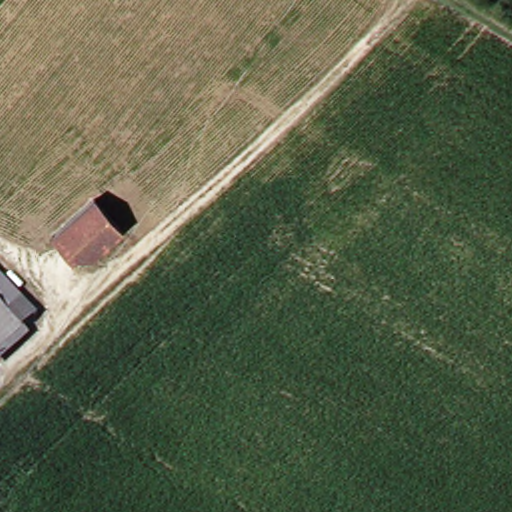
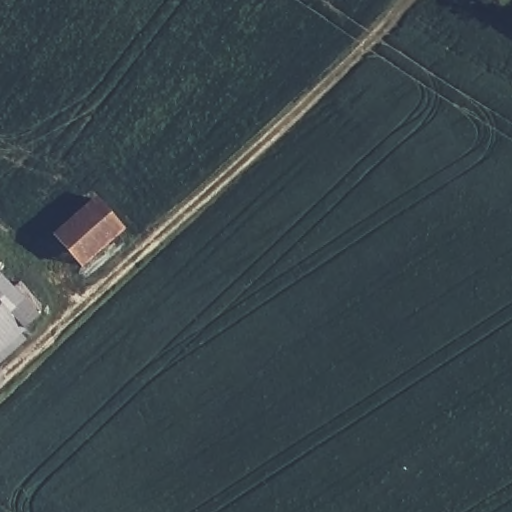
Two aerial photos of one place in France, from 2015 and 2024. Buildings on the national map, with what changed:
unchanged [(132,231),(98,263),(70,233),(105,201),(132,231)]
unchanged [(39,293),(23,307),(40,327),(1,360),(0,358),(0,271),(10,262),(39,293)]

